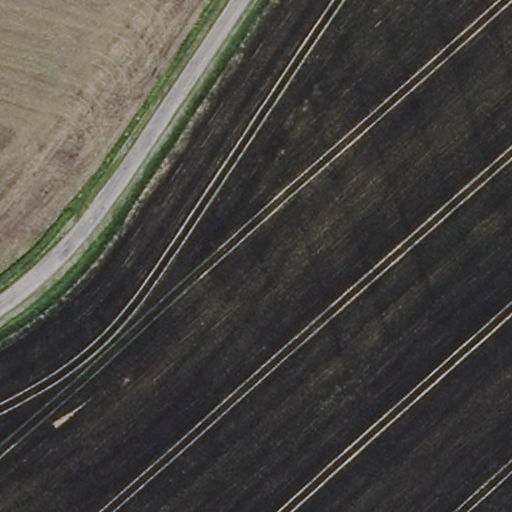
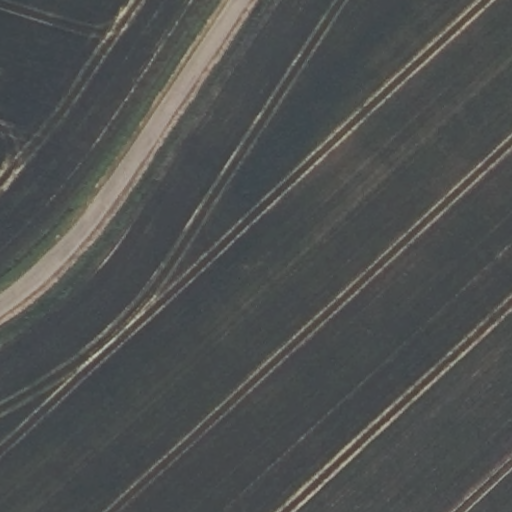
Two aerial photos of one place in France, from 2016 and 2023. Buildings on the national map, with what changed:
[]

